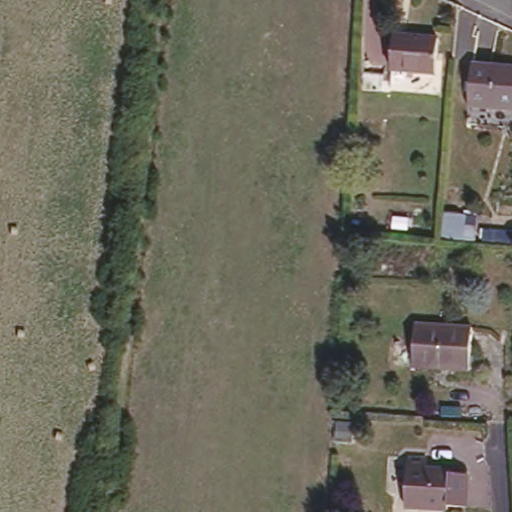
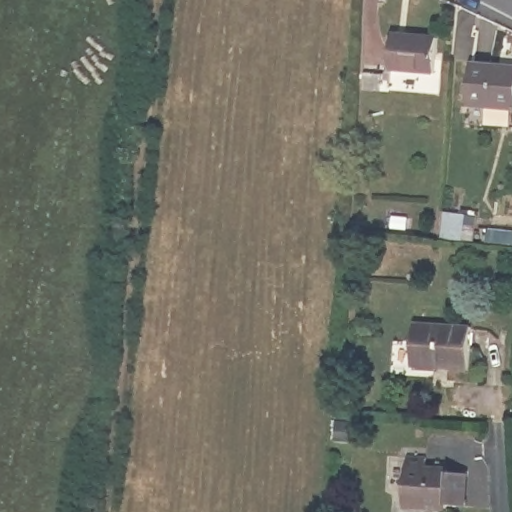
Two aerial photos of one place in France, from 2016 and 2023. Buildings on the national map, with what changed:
unchanged [(438,38),(435,71),(398,67),(401,35),(438,38)]
unchanged [(471,65),(512,69),(512,109),(467,104),(471,65)]
unchanged [(413,368),(417,326),(473,332),(469,373),(413,368)]
unchanged [(427,466),(426,473),(450,476),(449,480),(469,481),(467,509),(447,507),(447,512),(421,512),(406,511),(409,465),(427,466)]

